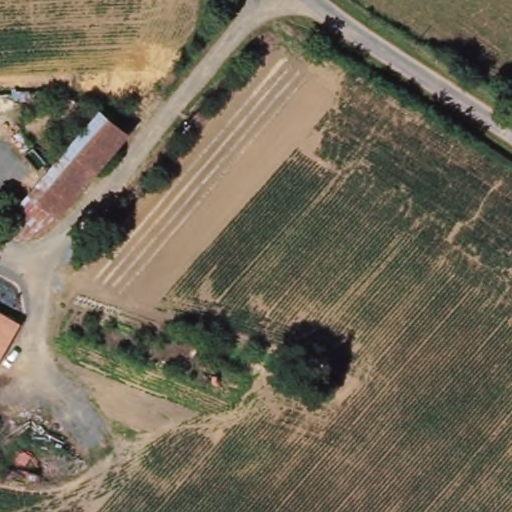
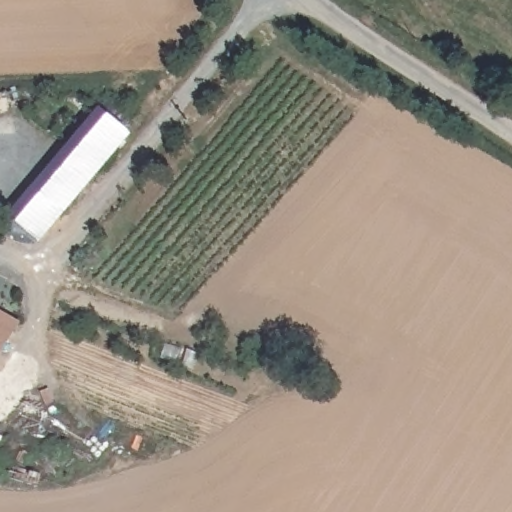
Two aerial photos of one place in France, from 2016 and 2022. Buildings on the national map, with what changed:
unchanged [(70,144),(100,108),(129,132),(116,148),(99,168),(70,144)]
unchanged [(30,191),(70,144),(99,168),(58,216),(30,191)]
unchanged [(50,223),(40,231),(29,237),(14,237),(0,227),(30,191),(58,216),(50,223)]
unchanged [(18,323),(0,354),(0,312),(18,323)]

